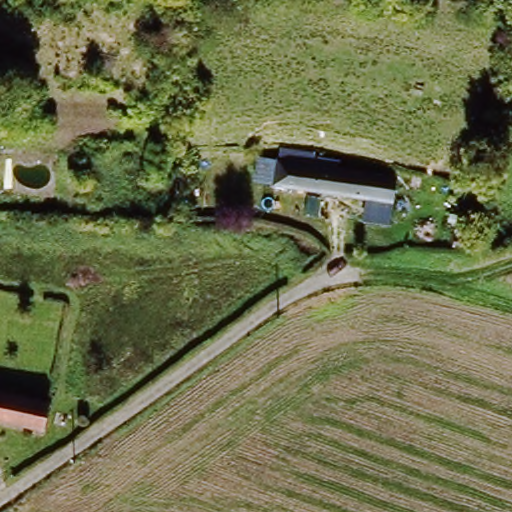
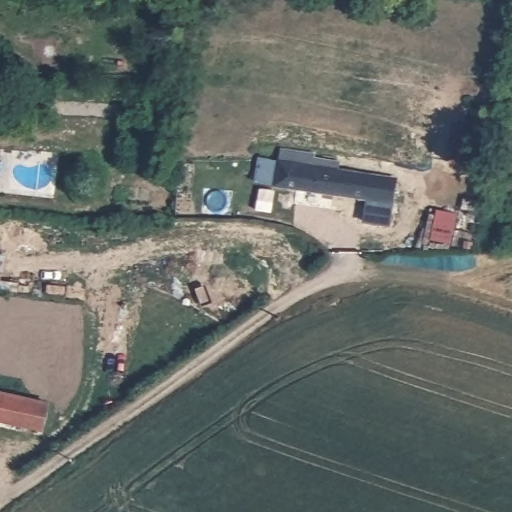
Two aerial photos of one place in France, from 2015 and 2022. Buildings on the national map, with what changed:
unchanged [(272,187),(274,163),(384,175),(381,200),(272,187)]
unchanged [(45,403),(39,428),(0,419),(0,393),(45,403)]

